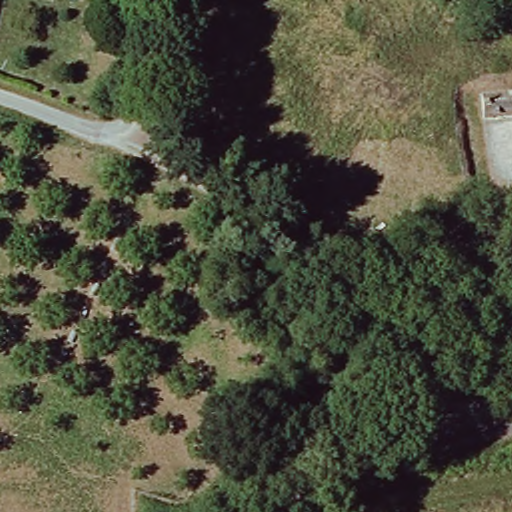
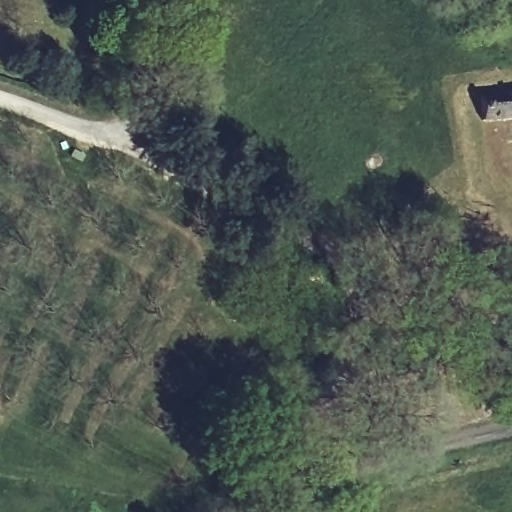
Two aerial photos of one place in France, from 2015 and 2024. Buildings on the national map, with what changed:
unchanged [(487,131),(479,109),(512,96),(512,121),(487,131)]

